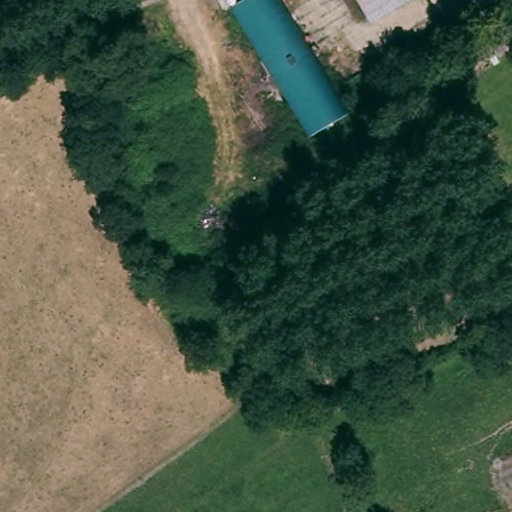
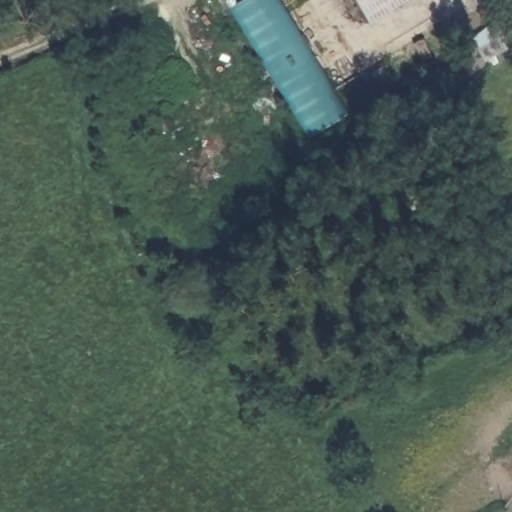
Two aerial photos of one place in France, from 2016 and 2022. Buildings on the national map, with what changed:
unchanged [(308,118),(222,0),(281,0),(347,90),(308,118)]
unchanged [(363,0),(411,0),(378,21),(363,0)]

